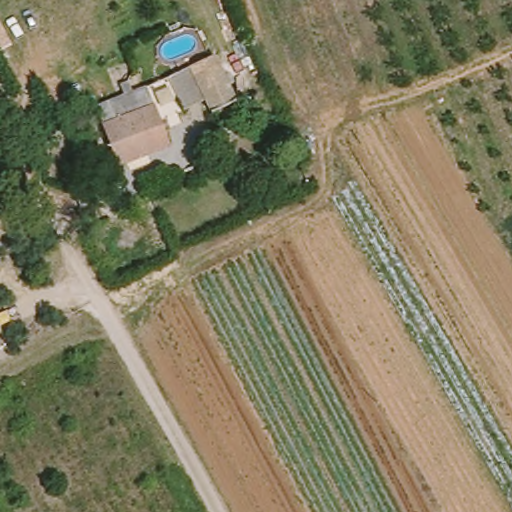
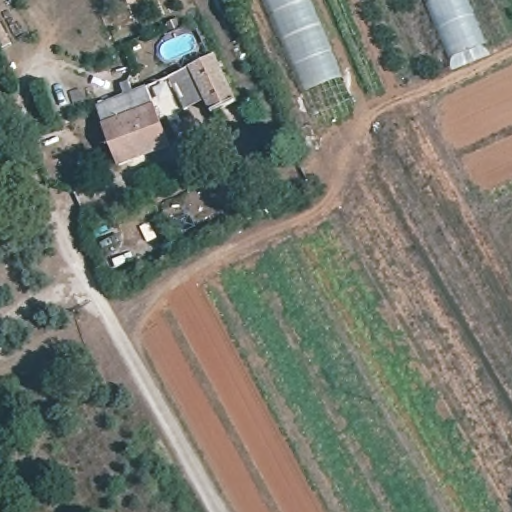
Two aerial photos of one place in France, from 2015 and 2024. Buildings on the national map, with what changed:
new [(352,101),(310,120),(260,0),(309,0),(352,101)]
new [(451,59),(426,0),(466,0),(485,45),(451,59)]
unchanged [(224,50),(247,98),(220,110),(215,104),(196,63),(224,50)]
unchanged [(195,114),(175,72),(196,63),(215,104),(195,114)]
unchanged [(120,171),(100,124),(102,122),(96,106),(145,85),(151,104),(170,146),(120,171)]

